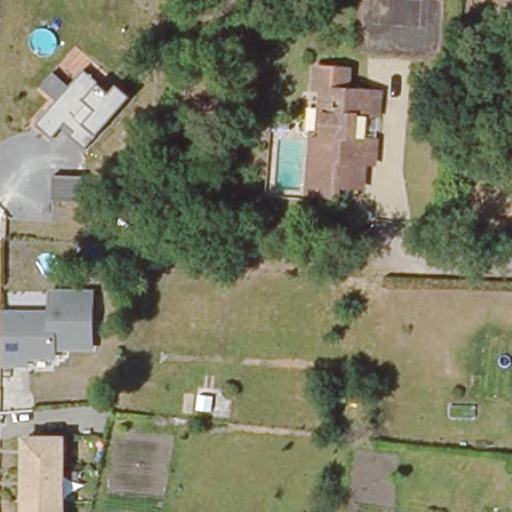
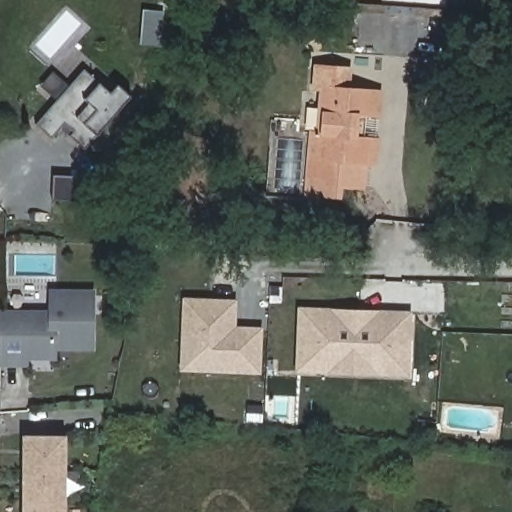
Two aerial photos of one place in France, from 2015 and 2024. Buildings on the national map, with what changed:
unchanged [(372,150),(365,149),(363,173),(340,172),(338,181),(303,179),(305,145),(307,119),(316,120),(320,75),(311,74),(312,53),(346,56),(344,77),(370,79),(378,79),(376,105),(368,105),(362,104),(360,123),(367,123),(375,124),(372,150)]
unchanged [(110,93),(118,85),(131,97),(99,135),(87,146),(62,125),(51,136),(37,122),(57,101),(40,86),(53,71),(70,87),(85,72),(100,83),(110,93)]
unchanged [(295,116),(293,135),(273,133),(275,115),(295,116)]
unchanged [(84,201),(52,200),(54,174),(85,176),(84,201)]
unchanged [(94,352),(57,352),(58,359),(27,359),(29,367),(0,366),(0,307),(50,310),(50,288),(94,289),(94,352)]
new [(236,325),(263,326),(261,374),(179,371),(181,297),(237,299),(236,325)]
new [(410,377),(295,372),(296,306),(412,310),(410,377)]
unchanged [(23,512),(23,436),(68,435),(66,512),(23,512)]

